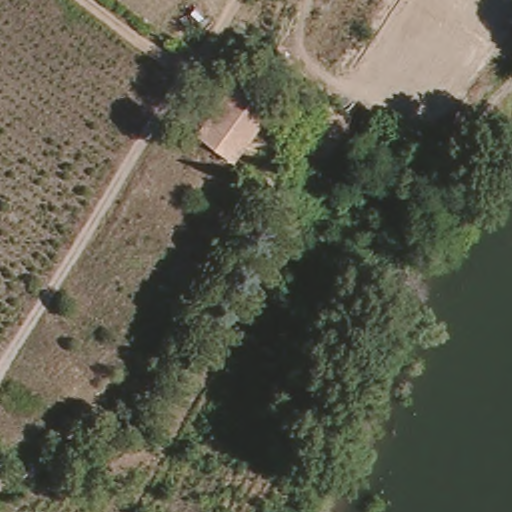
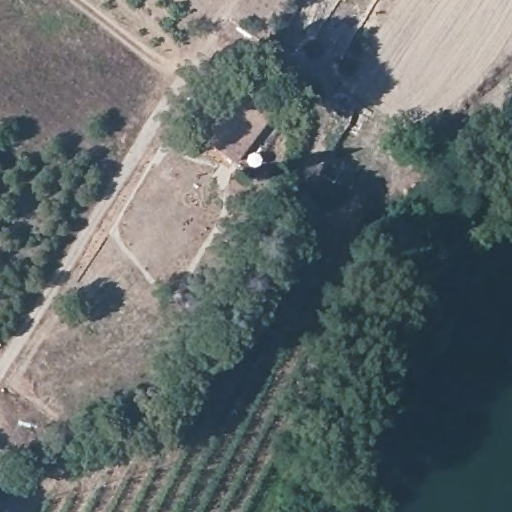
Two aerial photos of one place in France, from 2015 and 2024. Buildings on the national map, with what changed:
unchanged [(266,113),(229,161),(195,134),(227,87),(266,113)]

